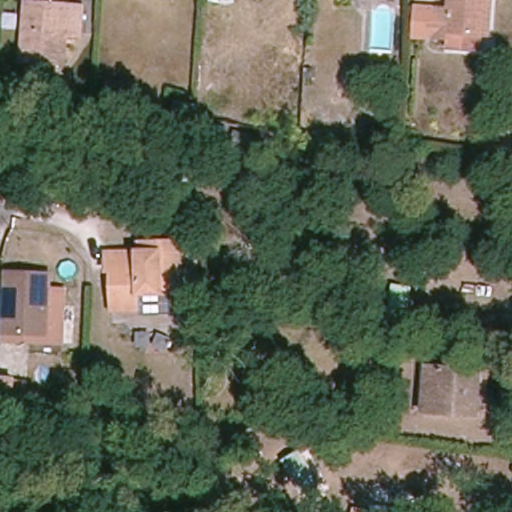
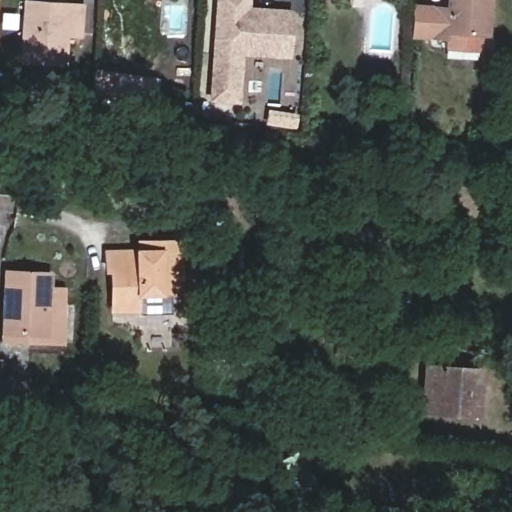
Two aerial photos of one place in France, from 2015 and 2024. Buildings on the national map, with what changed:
new [(243,54),(240,103),(208,100),(215,0),(251,0),(250,5),(293,9),(290,58),(243,54)]
unchanged [(482,35),(481,50),(447,48),(448,39),(413,36),(415,6),(450,9),(451,0),(493,0),(490,36),(482,35)]
unchanged [(84,6),(82,36),(69,35),(67,64),(24,61),(28,2),(84,6)]
demolished [(283,74),(286,41),(306,42),(304,75),(283,74)]
unchanged [(155,135),(157,123),(182,125),(183,122),(198,124),(195,144),(180,143),(181,139),(155,135)]
unchanged [(188,158),(252,174),(247,196),(182,179),(188,158)]
unchanged [(180,243),(182,293),(141,294),(141,309),(115,310),(113,269),(109,269),(108,253),(139,253),(139,244),(180,243)]
unchanged [(50,304),(65,304),(64,343),(5,341),(7,272),(51,274),(50,304)]
unchanged [(427,366),(481,370),(478,416),(424,412),(427,366)]
unchanged [(0,407),(0,378),(15,379),(11,408),(0,407)]

